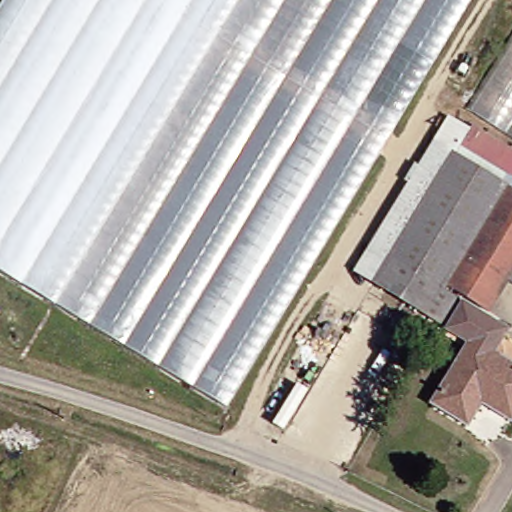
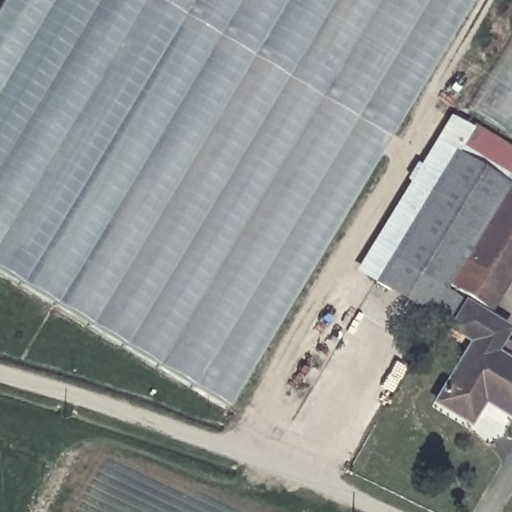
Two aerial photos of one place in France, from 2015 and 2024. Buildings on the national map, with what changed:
unchanged [(0,267),(0,11),(7,0),(472,0),(229,407),(0,267)]
unchanged [(512,43),(512,135),(471,109),(512,43)]
unchanged [(490,313),(448,286),(446,289),(392,258),(454,153),(512,188),(512,280),(510,279),(490,313)]
unchanged [(473,397),(460,416),(433,399),(467,342),(447,329),(459,306),(501,331),(498,338),(512,347),(512,409),(508,416),(473,397)]

